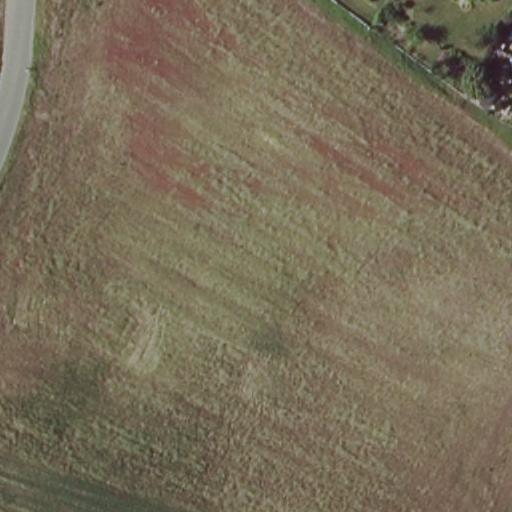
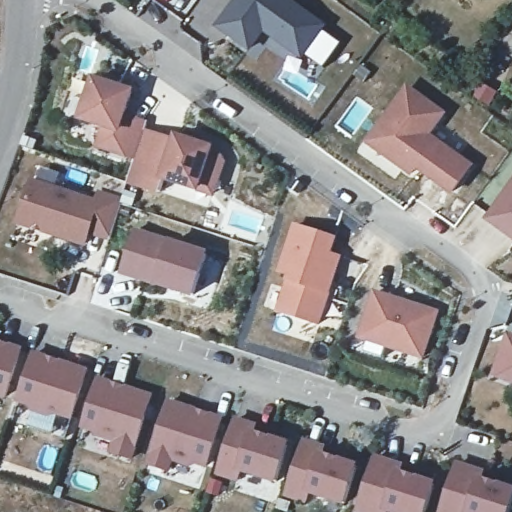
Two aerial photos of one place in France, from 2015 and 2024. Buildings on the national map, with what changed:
new [(197,0),(198,0),(198,1),(197,0)]
new [(293,0),(328,26),(303,61),(266,33),(252,53),(216,30),(237,0),(293,0)]
unchanged [(493,76),(506,84),(498,99),(485,91),(493,76)]
new [(96,149),(103,130),(80,121),(94,77),(137,90),(127,117),(150,123),(137,161),(96,149)]
new [(414,159),(393,143),(380,134),(388,122),(419,80),(454,106),(438,126),(481,159),(463,184),(427,158),(422,165),(414,159)]
new [(204,179),(171,168),(166,182),(134,171),(150,121),(182,131),(183,126),(191,129),(193,124),(205,128),(203,133),(222,140),(228,152),(222,168),(217,184),(204,179)]
unchanged [(96,198),(98,191),(124,198),(109,241),(89,235),(85,249),(17,224),(32,180),(96,198)]
new [(512,192),(512,221),(498,211),(512,192)]
new [(343,235),(339,254),(347,256),(327,325),(281,312),(293,272),(286,269),(298,222),(343,235)]
new [(136,229),(172,240),(211,252),(196,298),(157,286),(122,276),(136,229)]
new [(442,307),(427,357),(365,341),(379,290),(442,307)]
new [(33,343),(18,389),(8,386),(3,389),(0,388),(0,332),(33,343)]
new [(512,334),(512,383),(492,377),(507,333),(512,334)]
new [(46,347),(98,365),(83,411),(66,405),(61,408),(44,402),(42,397),(31,394),(46,347)]
new [(110,374),(162,390),(143,452),(124,446),(127,435),(108,429),(106,424),(95,420),(110,374)]
new [(180,396),(232,414),(217,460),(206,457),(201,459),(182,453),(179,464),(160,458),(180,396)]
new [(242,413),(262,420),(259,427),(295,438),(282,475),(247,464),(244,473),(225,467),(242,413)]
new [(310,435),(330,442),(328,449),(363,460),(351,497),(316,486),(312,495),(293,489),(310,435)]
new [(382,452),(408,460),(405,467),(441,479),(430,512),(418,512),(393,504),(390,512),(385,512),(365,506),(382,452)]
new [(489,467),(487,474),(512,482),(512,512),(478,512),(475,511),(474,512),(446,512),(464,459),(489,467)]

